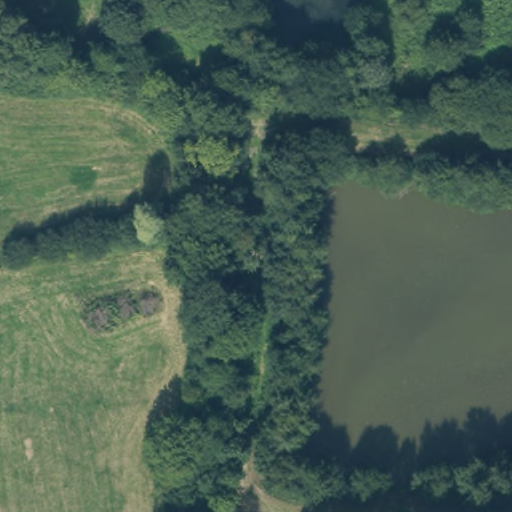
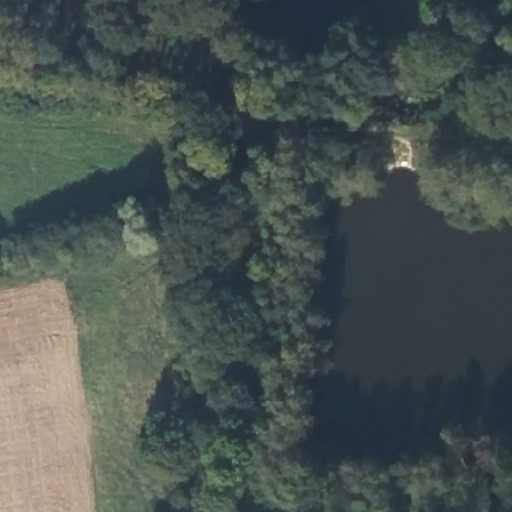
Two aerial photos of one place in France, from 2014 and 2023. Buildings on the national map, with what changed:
[]

